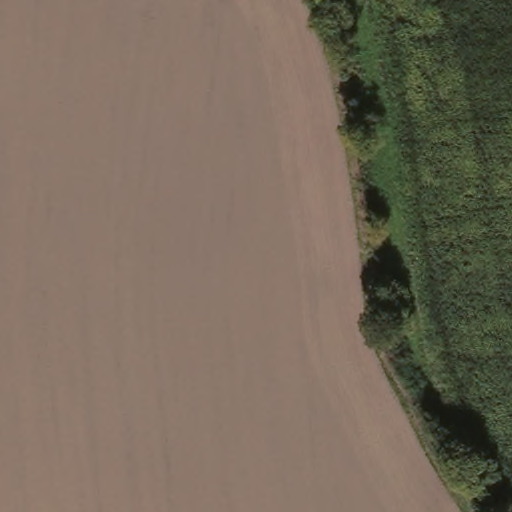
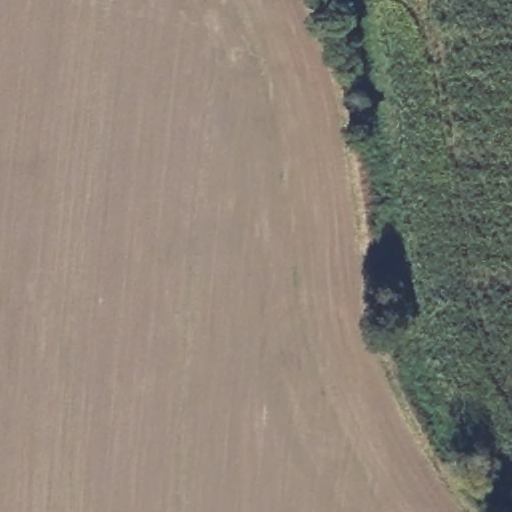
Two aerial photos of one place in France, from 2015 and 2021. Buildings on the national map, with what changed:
[]

